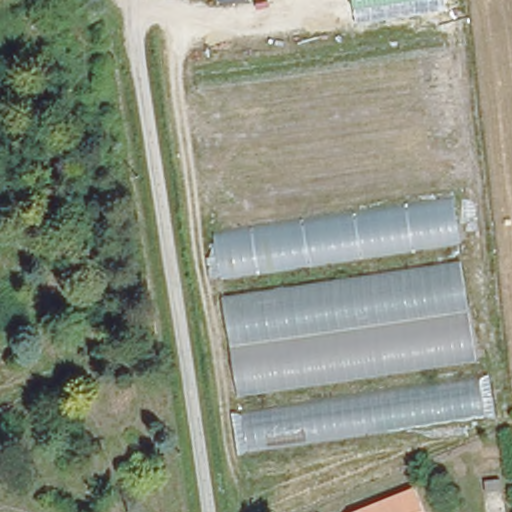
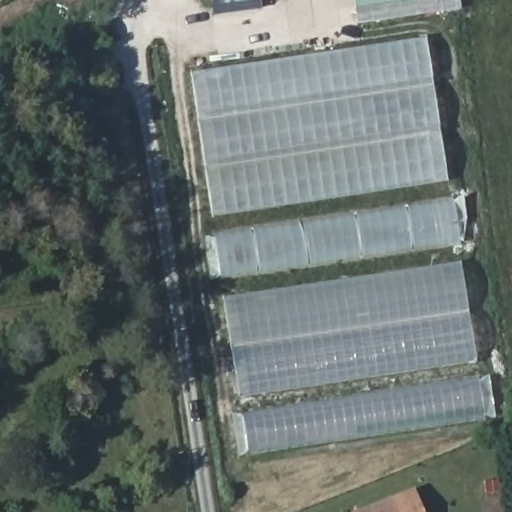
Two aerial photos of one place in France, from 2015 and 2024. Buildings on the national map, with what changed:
new [(258,0),(222,6),(221,0),(258,0)]
unchanged [(354,9),(353,0),(445,0),(446,10),(355,22),(354,9)]
new [(213,217),(193,73),(427,37),(450,181),(213,217)]
unchanged [(239,452),(233,416),(240,415),(212,237),(453,203),(477,381),(489,378),(496,418),(239,452)]
unchanged [(410,490),(420,512),(356,512),(410,490)]

